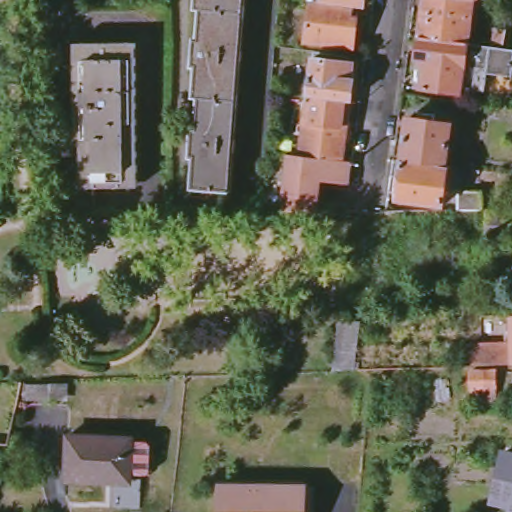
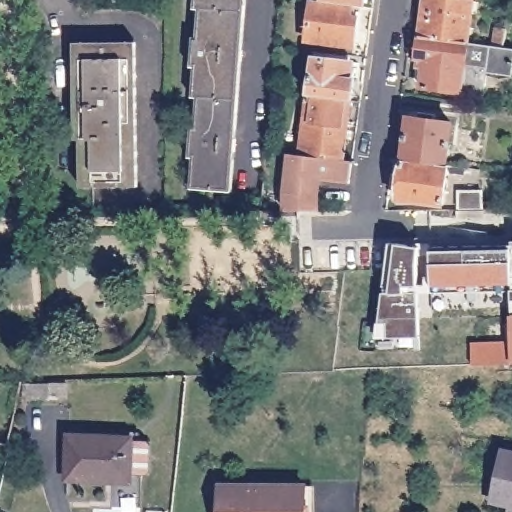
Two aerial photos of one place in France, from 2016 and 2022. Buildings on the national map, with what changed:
unchanged [(192,185),(194,153),(192,153),(193,121),(197,121),(198,93),(194,93),(197,63),(192,61),(193,33),(198,32),(200,6),(194,4),(194,0),(245,0),(232,187),(192,185)]
unchanged [(352,10),(321,5),(322,0),(364,0),(363,12),(352,10)]
unchanged [(420,38),(425,0),(474,0),(467,44),(420,38)]
unchanged [(321,5),(352,10),(350,21),(357,22),(353,50),(307,44),(312,4),(321,5)]
unchanged [(493,47),(495,29),(507,31),(505,49),(512,50),(512,77),(487,74),(485,91),(462,88),(460,93),(423,87),(425,60),(416,58),(418,37),(420,38),(467,44),(493,47)]
unchanged [(88,145),(83,146),(83,46),(133,46),(131,187),(88,187),(88,145)]
unchanged [(308,100),(313,61),(350,65),(347,83),(355,83),(352,106),(308,100)]
unchanged [(300,159),(308,100),(352,106),(344,164),(300,159)]
unchanged [(405,159),(410,117),(452,122),(447,164),(405,159)]
unchanged [(344,164),(352,166),(350,184),(320,181),(317,217),(279,214),(287,158),(300,159),(344,164)]
unchanged [(447,164),(449,165),(443,205),(398,199),(405,159),(447,164)]
unchanged [(464,218),(463,199),(487,198),(487,218),(464,218)]
new [(511,285),(434,288),(434,293),(418,293),(418,338),(375,339),(390,244),(397,244),(418,248),(417,240),(512,237),(512,319),(510,320),(511,285)]
unchanged [(512,369),(500,369),(471,370),(472,345),(511,345),(510,320),(512,319),(512,369)]
demolished [(471,370),(500,369),(500,406),(471,406),(471,370)]
unchanged [(25,385),(55,385),(55,398),(26,399),(25,385)]
unchanged [(68,480),(70,436),(135,437),(132,477),(105,476),(105,481),(68,480)]
unchanged [(510,456),(512,457),(512,506),(495,501),(510,456)]
unchanged [(305,487),(305,512),(220,512),(220,485),(305,487)]

